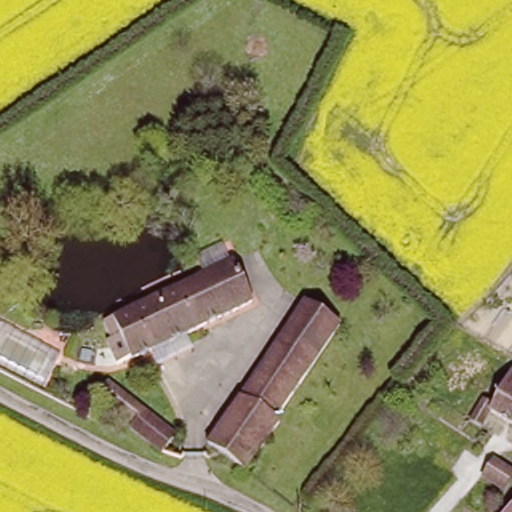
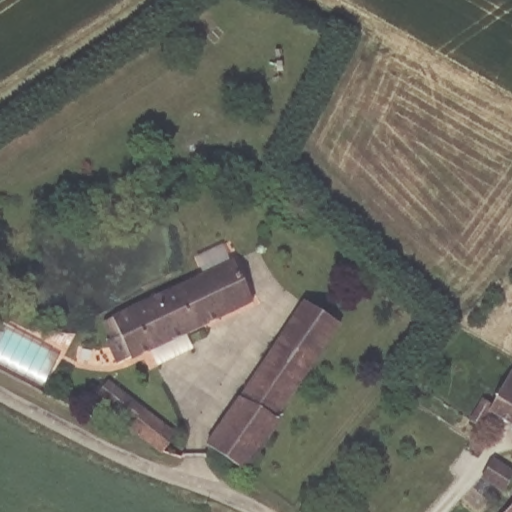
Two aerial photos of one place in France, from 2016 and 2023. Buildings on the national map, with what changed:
unchanged [(230,261),(252,300),(137,359),(129,343),(121,346),(110,322),(230,261)]
unchanged [(342,326),(315,367),(276,342),(305,301),(342,326)]
unchanged [(276,342),(315,367),(274,423),(279,427),(245,478),(205,451),(276,342)]
unchanged [(492,414),(482,427),(472,421),(488,396),(497,400),(512,378),(512,426),(492,414)]
unchanged [(171,430),(157,451),(127,428),(131,421),(95,392),(107,379),(171,430)]
unchanged [(499,512),(512,501),(512,512),(499,512)]

